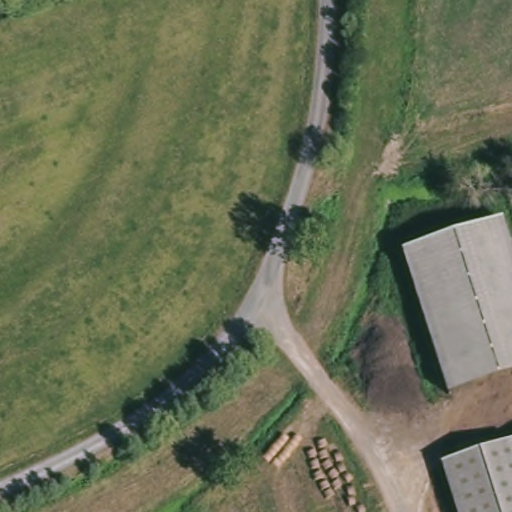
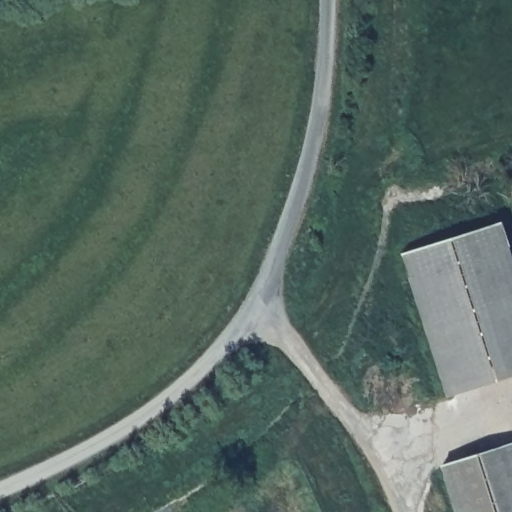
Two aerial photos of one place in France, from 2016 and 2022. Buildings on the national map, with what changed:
unchanged [(512,251),(512,379),(453,398),(407,257),(503,225),(512,251)]
unchanged [(512,512),(455,512),(441,466),(512,442),(512,512)]

